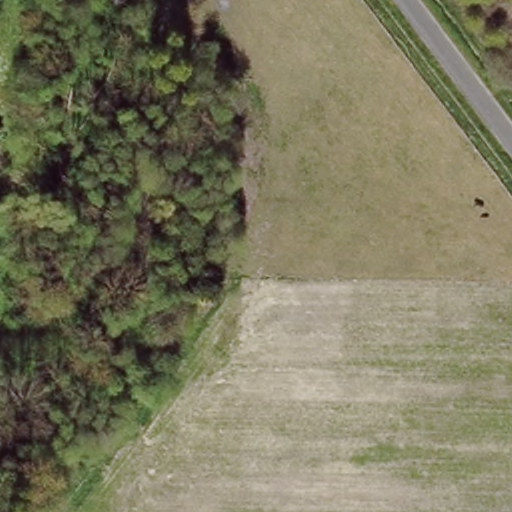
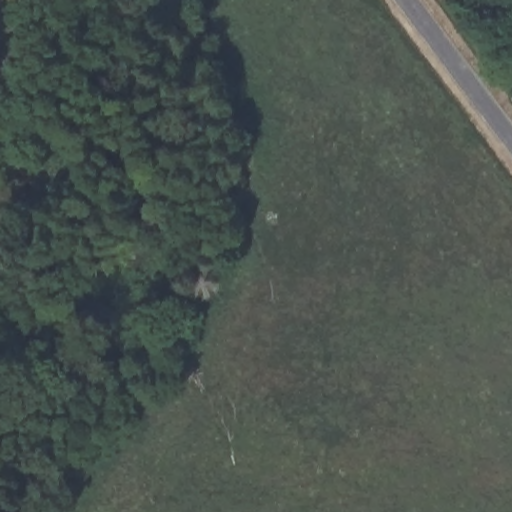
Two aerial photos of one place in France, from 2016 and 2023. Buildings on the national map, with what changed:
[]

